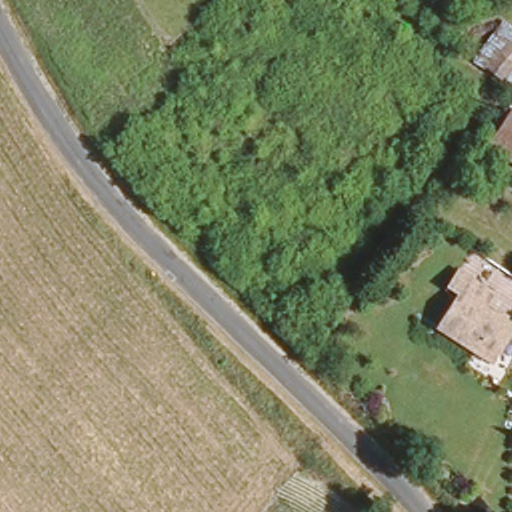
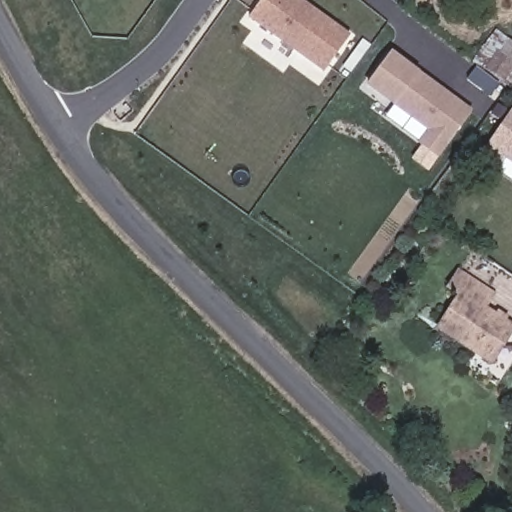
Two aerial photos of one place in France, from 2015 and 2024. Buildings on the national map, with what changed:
new [(302,0),(348,35),(322,70),(246,14),(256,0),(302,0)]
unchanged [(512,56),(512,62),(510,64),(512,66),(512,80),(509,84),(483,62),(497,44),(512,56)]
new [(389,52),(469,111),(434,156),(416,143),(426,130),(365,84),(389,52)]
unchanged [(507,110),(512,113),(512,161),(484,141),(507,110)]
unchanged [(487,363),(436,323),(462,291),(451,283),(461,270),(492,295),(482,307),(512,331),(487,363)]

